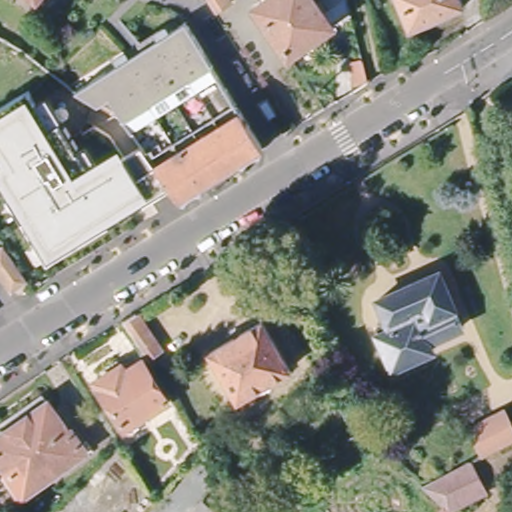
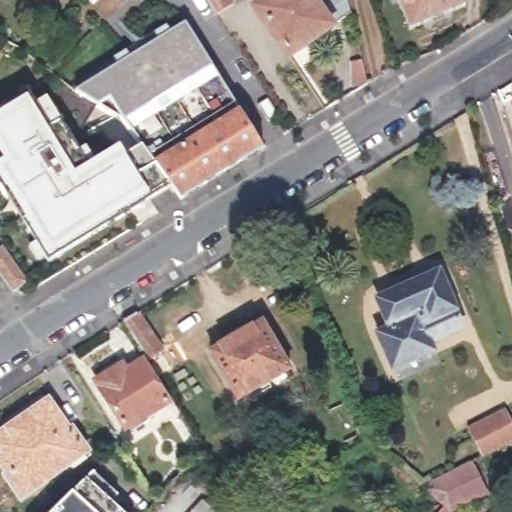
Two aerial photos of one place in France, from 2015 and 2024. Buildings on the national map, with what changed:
unchanged [(236,17),(222,25),(206,0),(226,0),(236,17)]
unchanged [(289,56),(257,8),(268,0),(346,0),(349,14),(289,56)]
unchanged [(466,11),(409,35),(396,0),(462,0),(466,11)]
unchanged [(172,187),(164,175),(143,146),(125,121),(76,92),(187,25),(242,113),(264,149),(181,200),(172,187)]
unchanged [(0,108),(29,90),(51,127),(61,121),(94,175),(143,146),(164,175),(172,187),(48,262),(23,220),(9,197),(0,183),(0,108)]
unchanged [(0,273),(0,250),(4,247),(14,263),(28,282),(13,292),(0,273)]
unchanged [(463,326),(428,342),(430,349),(392,366),(374,326),(387,321),(378,300),(438,272),(463,326)]
unchanged [(164,351),(150,361),(125,325),(140,315),(164,351)]
unchanged [(263,325),(292,373),(244,402),(215,355),(263,325)]
unchanged [(144,364),(168,405),(124,430),(96,383),(124,366),(128,373),(144,364)]
unchanged [(69,433),(71,431),(85,451),(20,493),(8,476),(10,474),(0,459),(0,422),(41,395),(69,433)]
unchanged [(471,427),(504,410),(512,425),(512,439),(484,454),(471,427)]
unchanged [(422,486),(470,461),(486,492),(449,511),(450,512),(438,512),(444,506),(422,486)]
new [(111,501),(123,512),(56,512),(73,494),(88,479),(95,471),(119,492),(111,501)]
unchanged [(216,512),(185,512),(199,497),(216,512)]

